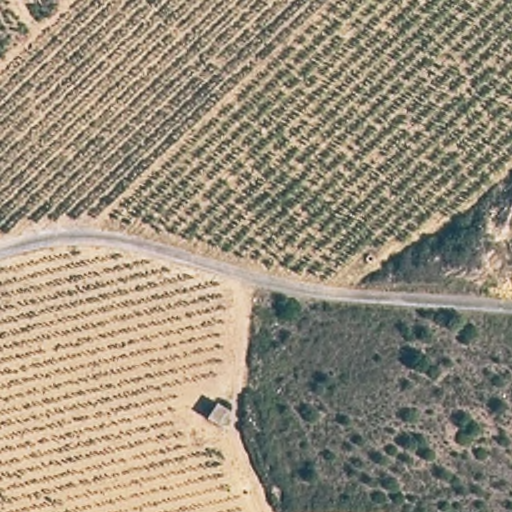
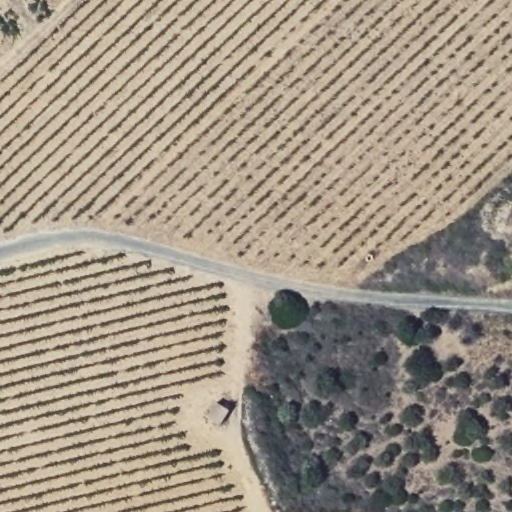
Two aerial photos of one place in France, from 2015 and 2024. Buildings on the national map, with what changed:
unchanged [(230,412),(222,426),(206,418),(216,402),(230,412)]

